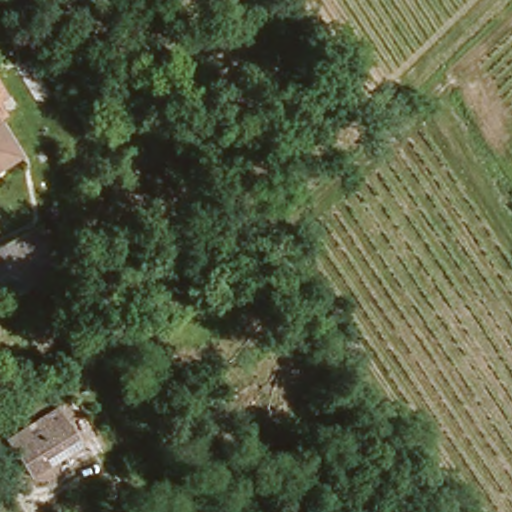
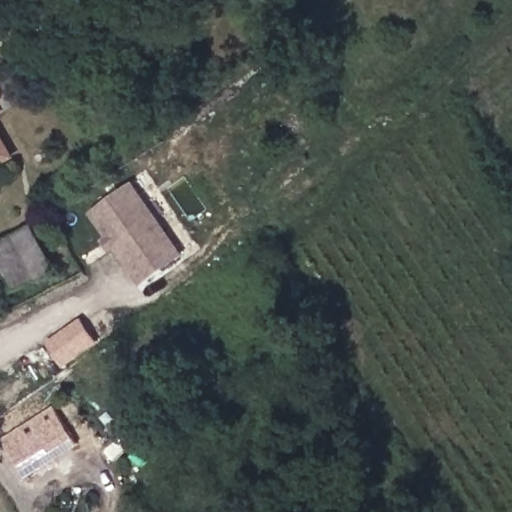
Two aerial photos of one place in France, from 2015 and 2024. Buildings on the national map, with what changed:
unchanged [(0,160),(0,132),(13,153),(0,160)]
new [(112,254),(104,241),(108,237),(91,214),(135,181),(189,256),(144,288),(116,250),(112,254)]
unchanged [(29,283),(6,244),(29,231),(50,271),(29,283)]
unchanged [(0,247),(6,244),(29,283),(0,299),(0,247)]
unchanged [(79,445),(25,479),(3,447),(55,408),(79,445)]

